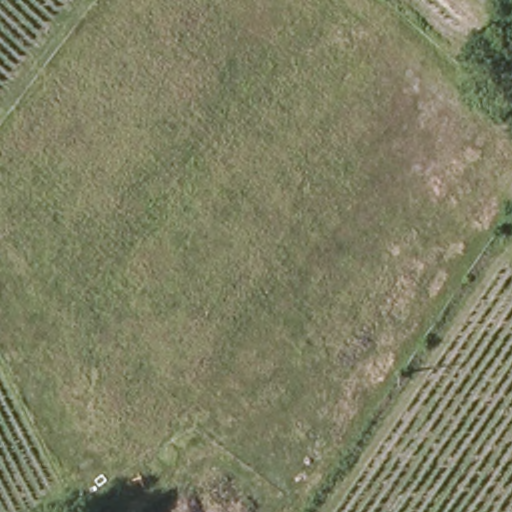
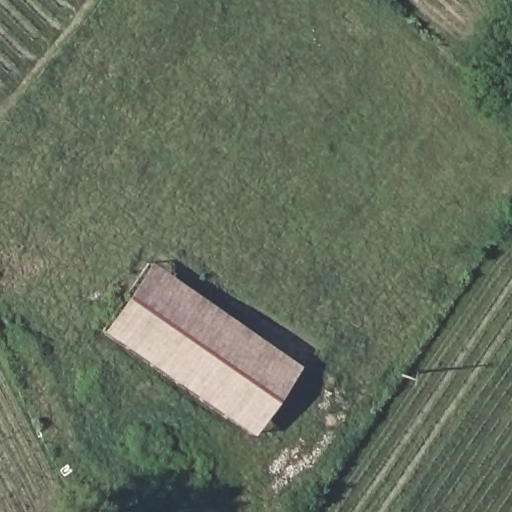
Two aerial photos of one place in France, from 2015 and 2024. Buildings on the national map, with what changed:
new [(149,262),(300,366),(251,436),(101,331),(149,262)]

